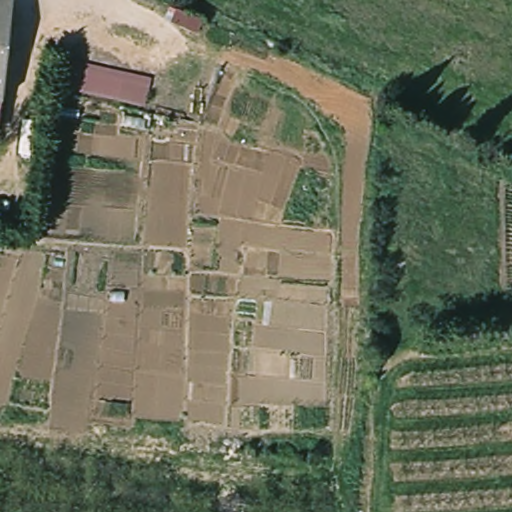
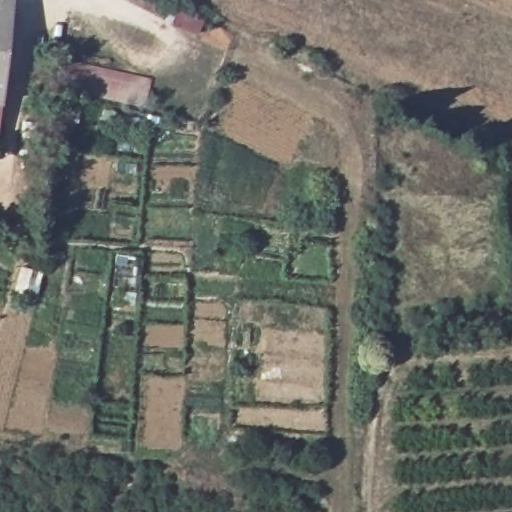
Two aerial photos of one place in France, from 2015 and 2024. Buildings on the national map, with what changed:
unchanged [(1,98),(0,97),(0,0),(9,0),(1,98)]
unchanged [(152,82),(147,112),(61,94),(65,65),(152,82)]
unchanged [(0,102),(0,97),(1,98),(0,102)]

